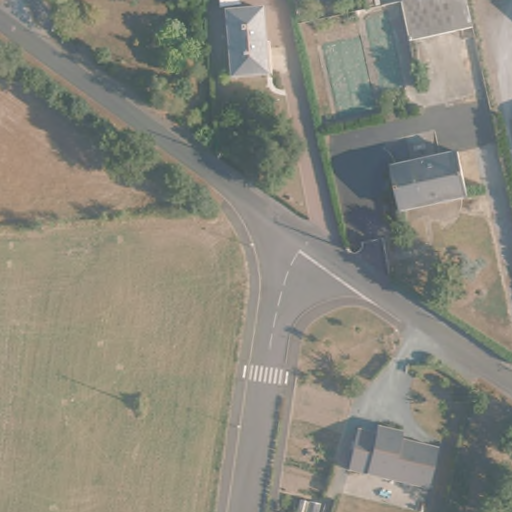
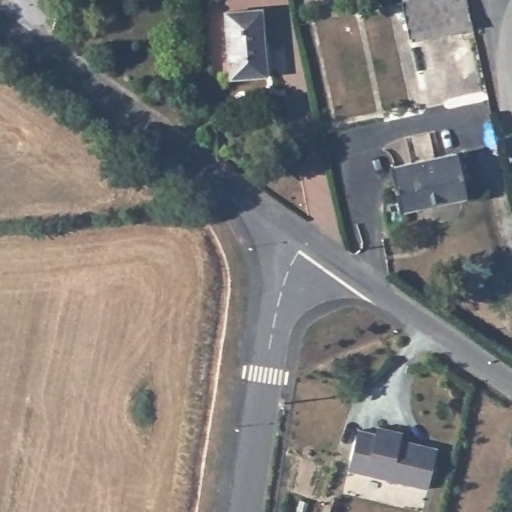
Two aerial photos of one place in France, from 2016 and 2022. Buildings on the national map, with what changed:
unchanged [(406,41),(397,0),(464,0),(470,28),(406,41)]
unchanged [(257,10),(270,73),(233,80),(221,17),(257,10)]
unchanged [(461,150),(471,194),(401,209),(392,165),(461,150)]
unchanged [(395,431),(396,438),(431,445),(422,487),(342,471),(351,429),(370,433),(373,427),(395,431)]

